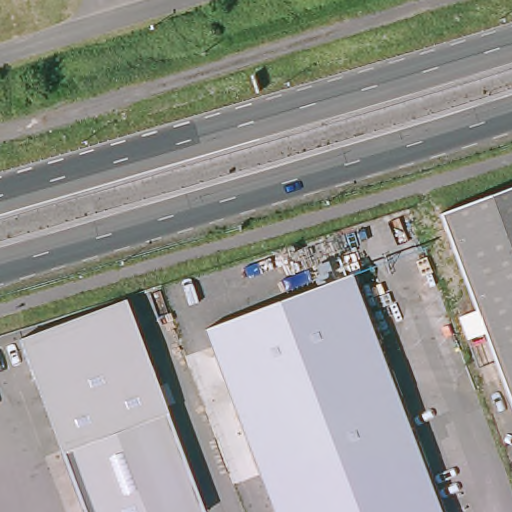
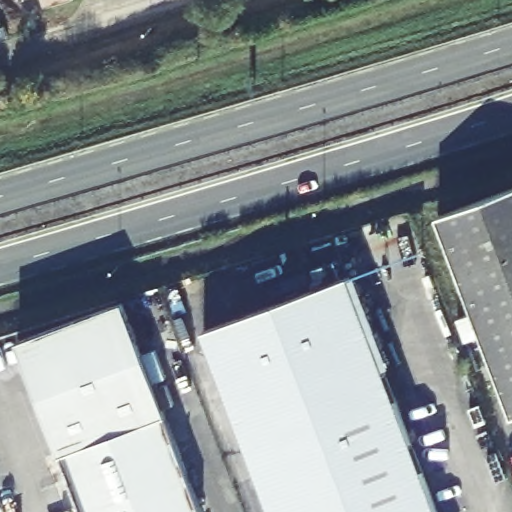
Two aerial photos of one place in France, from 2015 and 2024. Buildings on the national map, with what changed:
unchanged [(512,396),(446,202),(512,179),(512,396)]
unchanged [(344,262),(438,512),(271,512),(198,314),(344,262)]
unchanged [(124,298),(204,509),(198,512),(85,512),(21,335),(124,298)]

